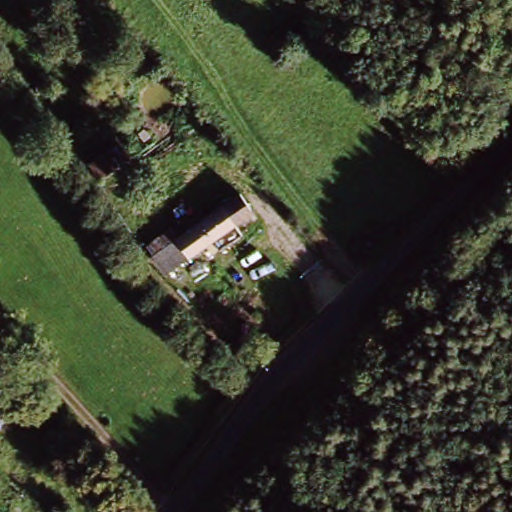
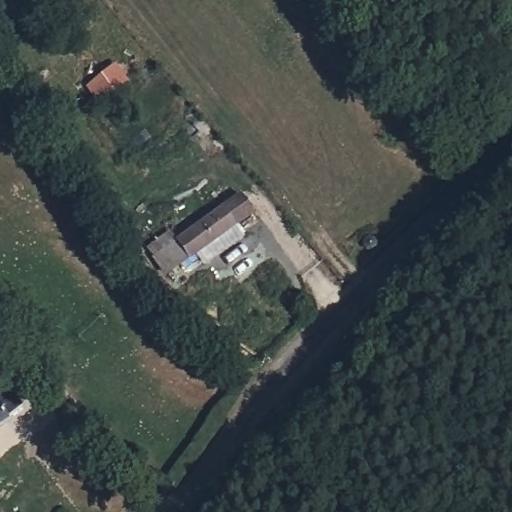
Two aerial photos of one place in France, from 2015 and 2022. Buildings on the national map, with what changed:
unchanged [(171,268),(155,246),(217,192),(235,212),(217,228),(230,242),(198,270),(186,256),(171,268)]
unchanged [(20,410),(0,426),(0,393),(5,389),(20,410)]

